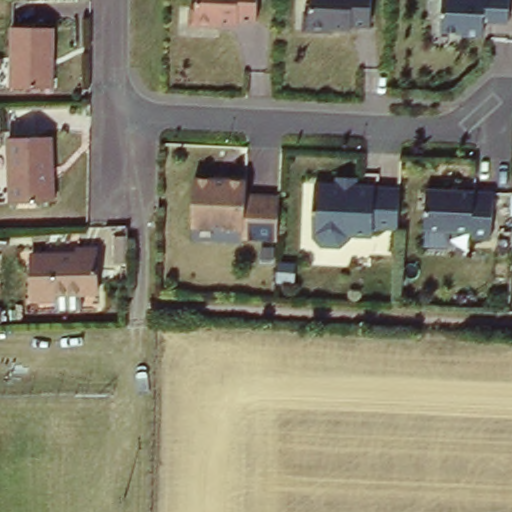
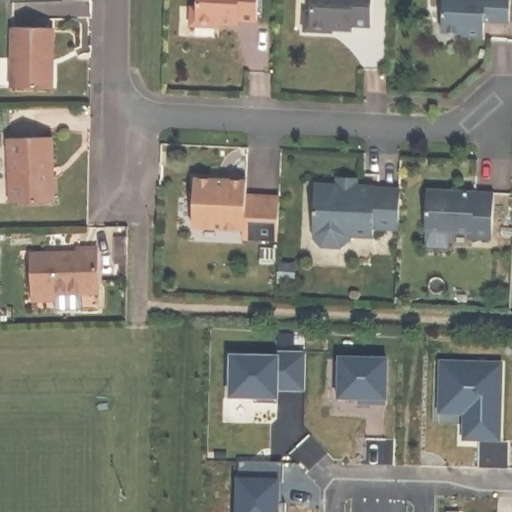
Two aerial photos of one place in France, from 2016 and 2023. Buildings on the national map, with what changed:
unchanged [(198,0),(257,0),(257,26),(197,26),(198,0)]
unchanged [(312,0),(372,0),(372,29),(311,31),(312,0)]
unchanged [(446,0),(511,0),(511,21),(487,21),(487,34),(446,28),(446,0)]
unchanged [(14,87),(14,28),(47,27),(52,27),(53,66),(52,88),(14,87)]
unchanged [(55,201),(11,203),(9,138),(52,137),(55,201)]
unchanged [(197,175),(245,177),(247,195),(281,194),(279,241),(243,242),(243,227),(195,226),(197,175)]
unchanged [(346,244),(325,246),(315,236),(313,179),(400,181),(399,230),(354,234),(346,244)]
unchanged [(430,187),(493,190),(491,230),(430,229),(430,187)]
unchanged [(127,265),(114,266),(115,228),(127,227),(127,265)]
unchanged [(97,295),(56,295),(56,301),(34,302),(34,256),(79,255),(79,249),(97,249),(97,295)]
new [(276,358),(276,354),(306,355),(305,390),(277,389),(277,403),(255,403),(255,400),(230,400),(231,358),(276,358)]
new [(387,359),(386,403),(370,403),(370,399),(338,399),(339,358),(387,359)]
new [(502,362),(500,439),(463,439),(464,413),(440,413),(440,361),(502,362)]

